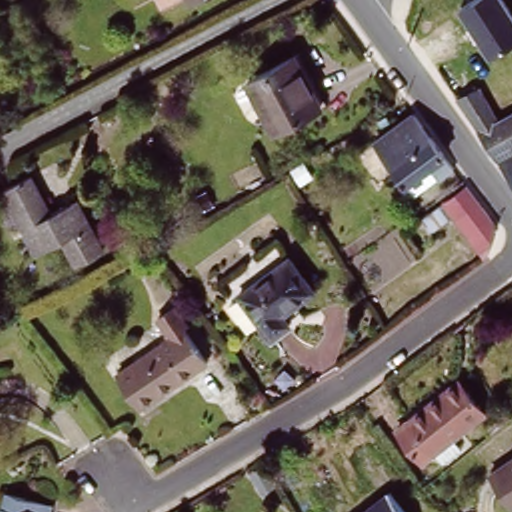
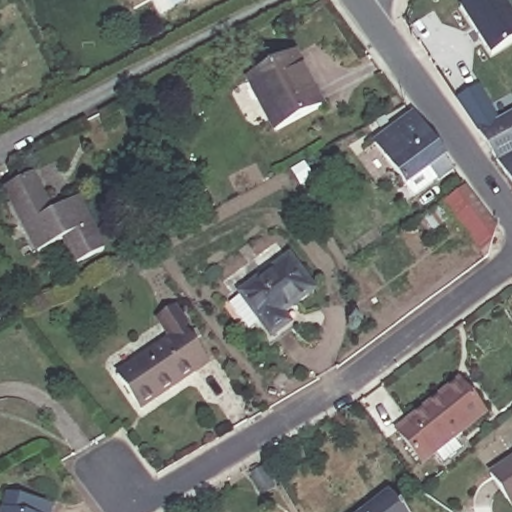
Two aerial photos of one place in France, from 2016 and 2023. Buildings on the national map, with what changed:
unchanged [(185,6),(182,0),(197,0),(185,6)]
unchanged [(512,13),(512,45),(490,58),(457,7),(469,0),(504,0),(512,13)]
unchanged [(312,107),(267,131),(240,81),(286,57),(312,107)]
unchanged [(501,118),(512,113),(512,154),(496,163),(454,100),(480,84),(501,118)]
unchanged [(456,170),(440,181),(439,180),(415,197),(377,145),(415,115),(456,170)]
unchanged [(499,173),(512,166),(512,192),(499,173)]
unchanged [(102,254),(75,267),(62,243),(36,256),(2,192),(27,179),(49,217),(75,203),(102,254)]
unchanged [(469,237),(465,240),(441,209),(464,192),(493,231),(484,258),(469,237)]
unchanged [(310,291),(280,313),(287,324),(269,337),(237,294),(286,258),(310,291)]
unchanged [(132,403),(114,377),(170,338),(156,318),(173,307),(181,319),(185,326),(182,328),(206,362),(152,400),(137,411),(132,403)]
unchanged [(486,416),(425,466),(389,419),(437,384),(444,393),(460,381),(486,416)]
unchanged [(511,508),(487,475),(512,458),(512,507),(511,508)]
unchanged [(359,512),(389,489),(406,512),(359,512)]
unchanged [(2,512),(7,494),(51,504),(49,512),(2,512)]

